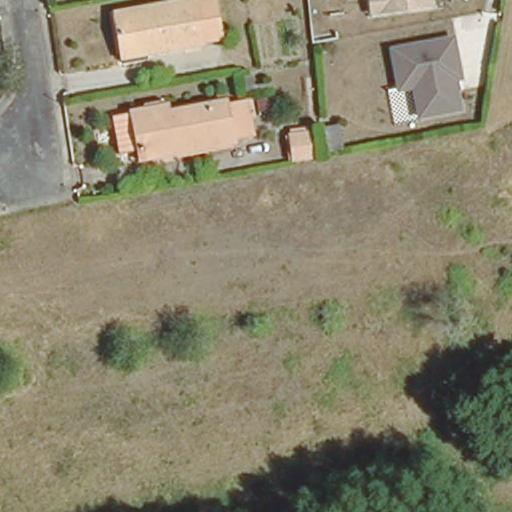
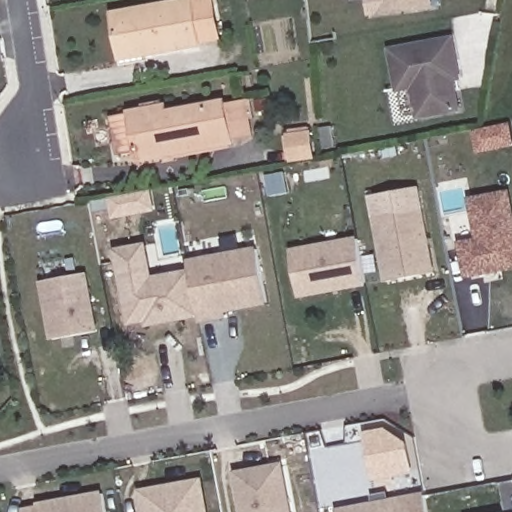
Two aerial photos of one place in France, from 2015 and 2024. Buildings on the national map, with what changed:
unchanged [(150,44),(148,39),(120,45),(113,9),(162,0),(212,0),(214,14),(217,33),(199,36),(150,44)]
unchanged [(416,8),(367,14),(365,0),(427,0),(427,6),(416,8)]
unchanged [(460,91),(464,112),(420,120),(412,88),(396,91),(390,48),(459,34),(466,89),(460,91)]
unchanged [(129,105),(227,89),(229,103),(250,99),(255,135),(235,139),(137,154),(129,105)]
new [(511,122),(512,127),(512,146),(477,154),(473,130),(511,122)]
unchanged [(340,126),(344,153),(315,158),(317,161),(288,164),(286,134),(340,126)]
new [(420,185),(437,273),(386,283),(369,195),(420,185)]
new [(152,189),(157,212),(112,219),(108,197),(152,189)]
new [(475,238),(467,197),(511,189),(512,197),(512,270),(466,279),(457,241),(475,238)]
new [(358,235),(367,286),(300,299),(291,248),(358,235)]
new [(147,242),(154,275),(189,269),(187,259),(258,247),(268,305),(227,313),(229,318),(200,323),(199,318),(146,328),(146,323),(129,326),(115,249),(147,242)]
new [(89,272),(99,332),(51,340),(40,281),(89,272)]
new [(372,483),(363,433),(385,429),(409,442),(414,474),(372,483)]
new [(283,461),(293,512),(241,512),(233,471),(283,461)]
new [(203,477),(209,512),(141,512),(137,489),(203,477)]
new [(37,505),(37,502),(104,490),(108,512),(22,512),(22,509),(37,505)]
new [(373,501),(372,494),(388,492),(389,498),(425,492),(428,512),(336,512),(335,508),(373,501)]

